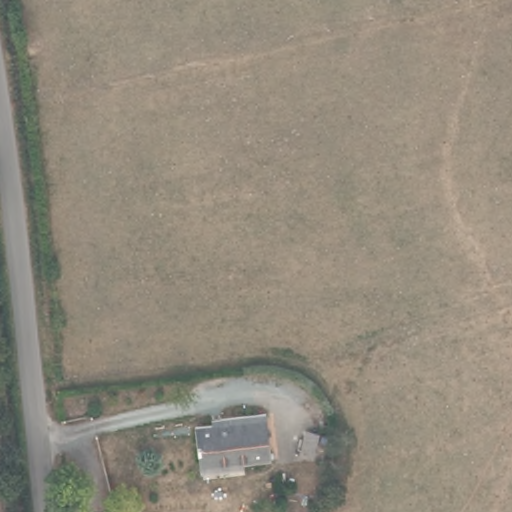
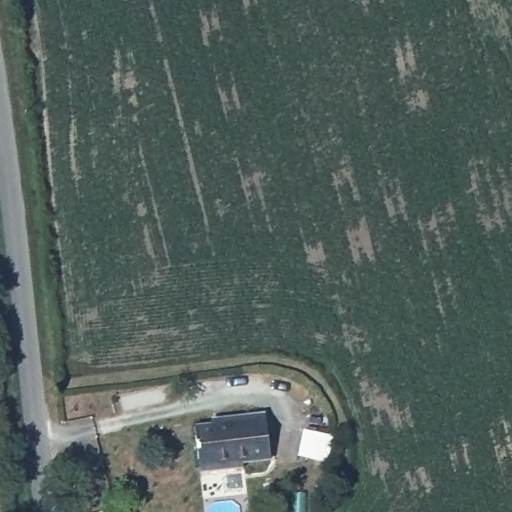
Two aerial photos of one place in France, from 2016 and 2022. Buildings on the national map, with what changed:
unchanged [(201,481),(199,468),(194,426),(219,423),(218,420),(266,413),(271,457),(241,462),(242,475),(201,481)]
unchanged [(319,433),(313,460),(301,456),(307,431),(319,433)]

